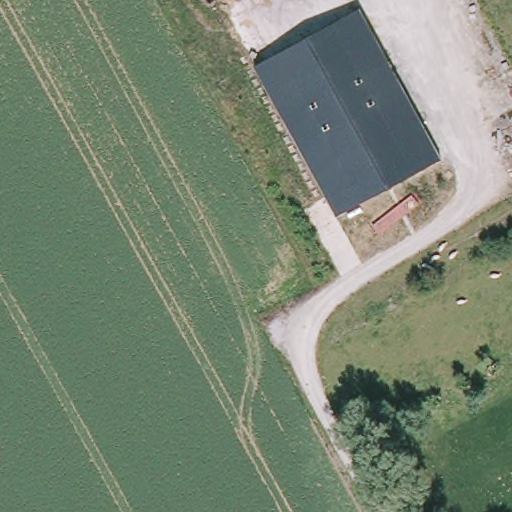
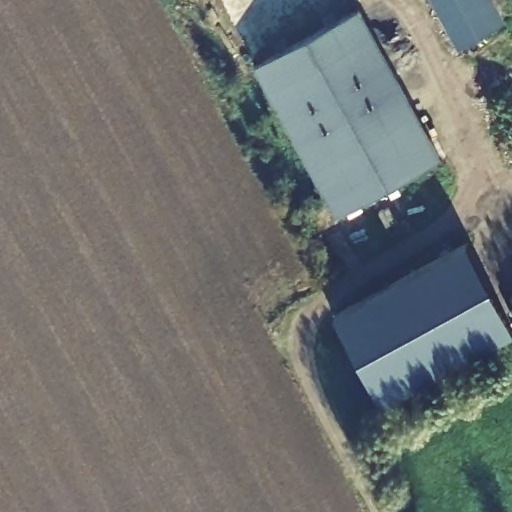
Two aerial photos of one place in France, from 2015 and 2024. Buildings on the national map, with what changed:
new [(506,21),(459,46),(434,0),(494,0),(506,21)]
unchanged [(254,68),(357,11),(440,161),(337,218),(254,68)]
new [(512,331),(512,335),(386,407),(333,315),(467,245),(512,331)]

